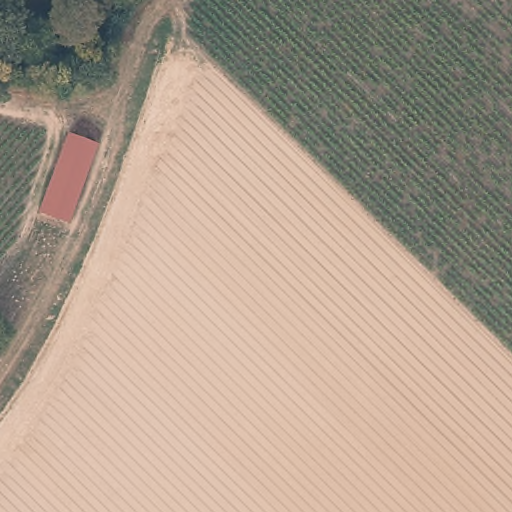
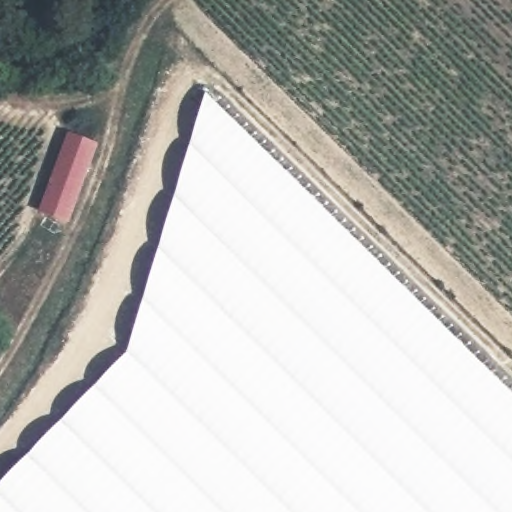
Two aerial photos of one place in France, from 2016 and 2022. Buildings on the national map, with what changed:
new [(126,351),(203,92),(512,394),(512,512),(0,512),(0,481),(126,351)]
unchanged [(40,210),(68,135),(92,144),(65,220),(40,210)]

